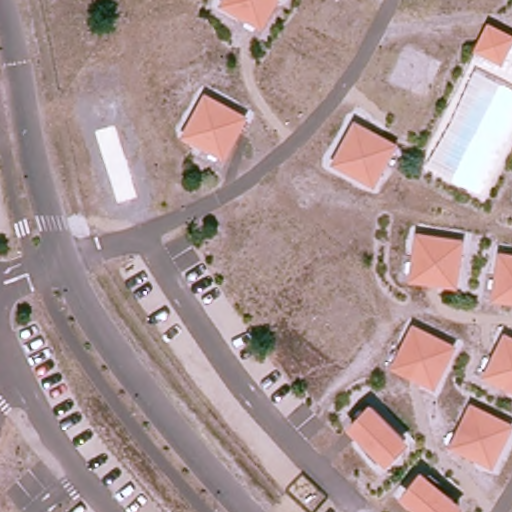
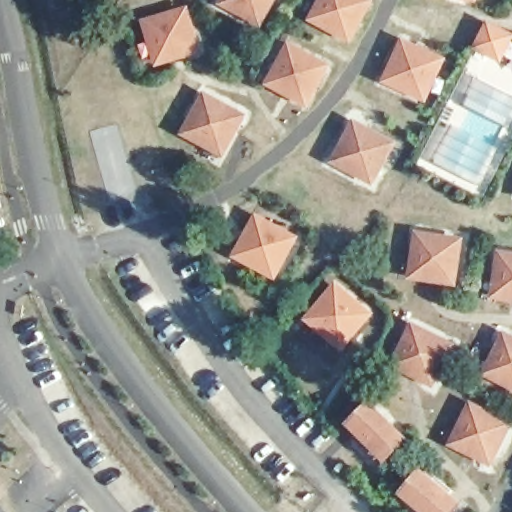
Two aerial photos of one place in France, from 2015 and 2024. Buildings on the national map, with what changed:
unchanged [(271,0),(258,23),(224,4),(226,0),(271,0)]
new [(319,0),(375,0),(351,43),(308,21),(319,0)]
demolished [(322,15),(330,0),(376,0),(358,34),(322,15)]
new [(466,0),(476,0),(476,2),(466,0)]
new [(142,20),(190,5),(203,51),(156,68),(142,20)]
demolished [(194,8),(206,46),(167,58),(156,20),(194,8)]
unchanged [(511,37),(499,61),(475,49),(487,25),(511,37)]
new [(401,38),(448,58),(429,103),(382,81),(401,38)]
demolished [(449,56),(433,93),(396,76),(413,40),(449,56)]
new [(288,42),(333,66),(311,108),(265,85),(288,42)]
demolished [(334,63),(315,98),(279,79),(299,44),(334,63)]
unchanged [(185,133),(204,98),(239,117),(220,152),(185,133)]
unchanged [(335,161),(354,126),(389,145),(370,181),(335,161)]
new [(233,256),(256,214),(298,238),(275,279),(233,256)]
demolished [(302,235),(283,271),(247,251),(266,216),(302,235)]
unchanged [(417,237),(457,243),(451,283),(411,277),(417,237)]
unchanged [(512,258),(512,299),(494,296),(499,257),(512,258)]
new [(304,320),(336,282),(373,314),(342,352),(304,320)]
demolished [(376,310),(350,341),(319,315),(345,284),(376,310)]
unchanged [(413,329),(449,347),(431,383),(395,365),(413,329)]
unchanged [(509,338),(512,339),(512,384),(491,374),(509,338)]
unchanged [(511,426),(493,462),(457,444),(475,408),(511,426)]
unchanged [(401,443),(380,463),(349,432),(370,411),(401,443)]
unchanged [(457,505),(451,512),(421,512),(405,498),(423,477),(457,505)]

